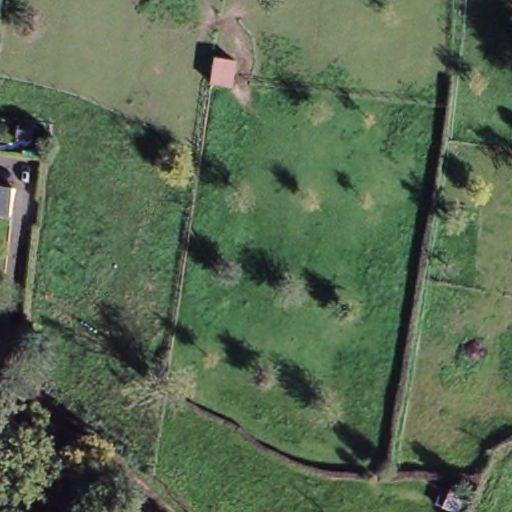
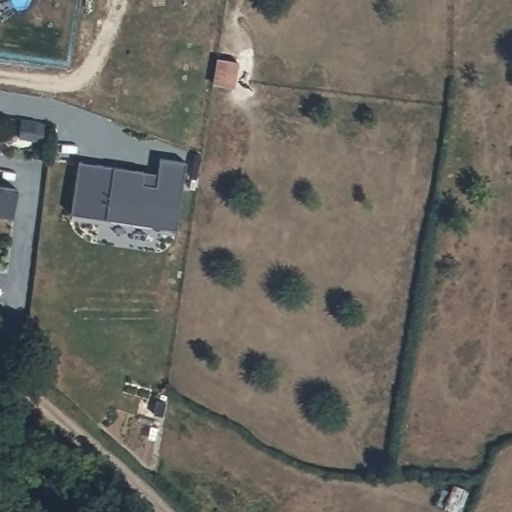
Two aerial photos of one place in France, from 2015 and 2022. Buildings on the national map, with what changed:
unchanged [(229,87),(208,84),(212,58),(232,62),(229,87)]
new [(143,169),(156,171),(158,159),(185,162),(175,229),(71,212),(78,160),(143,169)]
unchanged [(15,185),(10,214),(0,212),(0,183),(15,185)]

